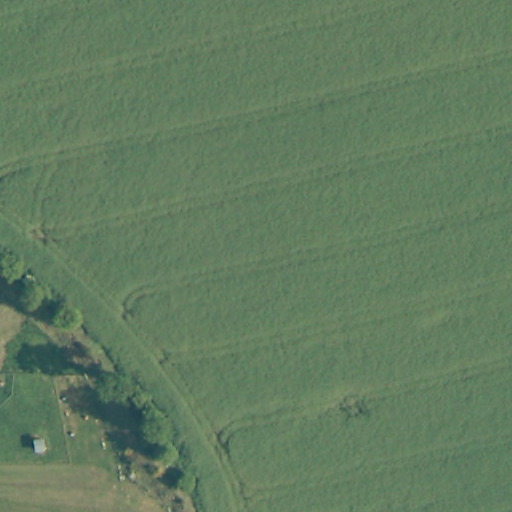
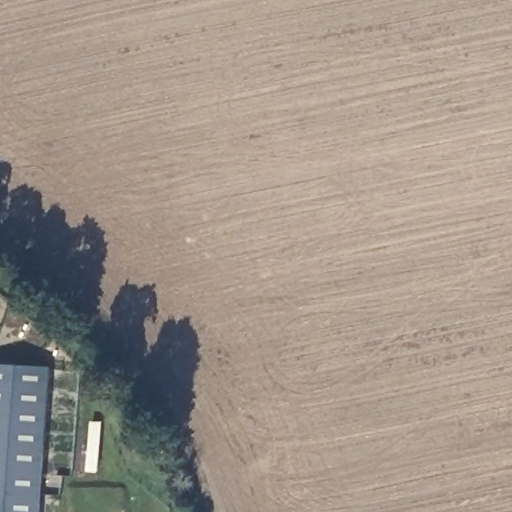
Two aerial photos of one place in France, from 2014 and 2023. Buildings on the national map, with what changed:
new [(0,512),(0,365),(49,368),(40,512),(0,512)]

